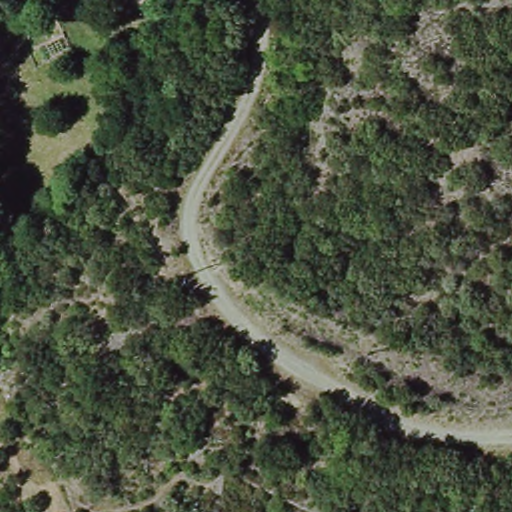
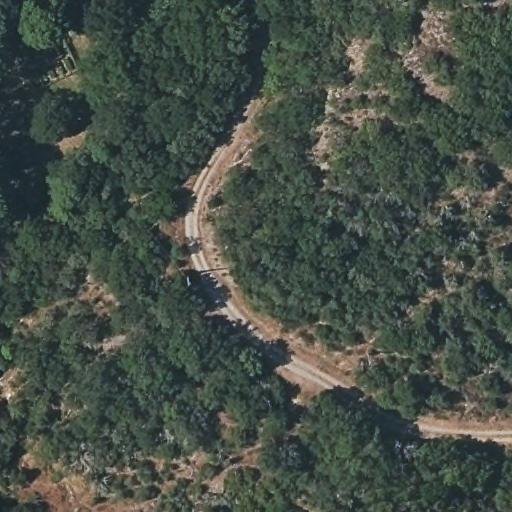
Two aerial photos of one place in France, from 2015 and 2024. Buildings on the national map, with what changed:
unchanged [(146,0),(132,6),(129,0),(146,0)]
unchanged [(154,114),(150,104),(160,99),(166,109),(154,114)]

